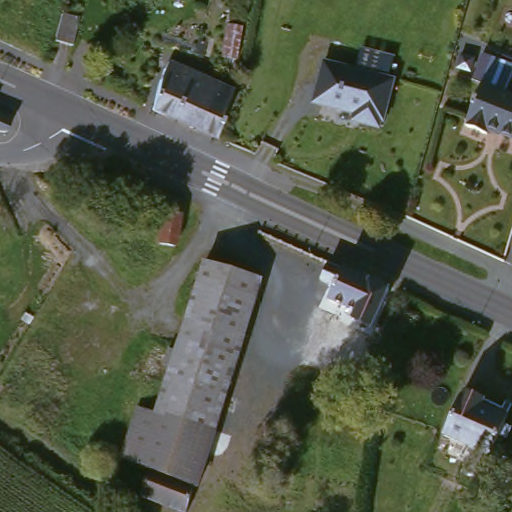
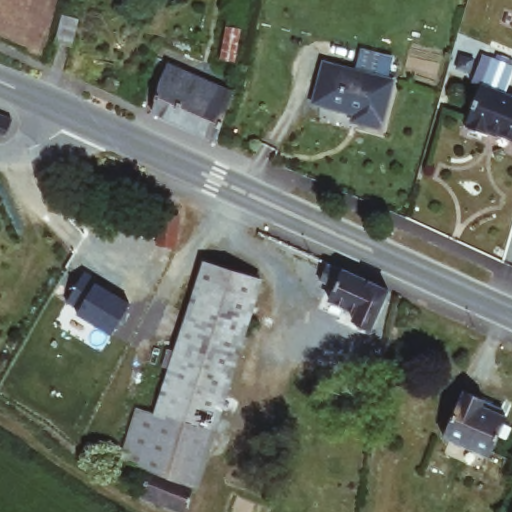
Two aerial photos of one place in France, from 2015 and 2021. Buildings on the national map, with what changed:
unchanged [(63,39),(70,12),(87,15),(79,41),(63,39)]
unchanged [(235,54),(243,22),(257,26),(254,37),(254,40),(250,57),(235,54)]
unchanged [(481,127),(480,132),(461,126),(474,87),(465,84),(473,61),(501,70),(493,94),(512,100),(512,133),(510,137),(481,127)]
unchanged [(387,85),(374,126),(372,125),(370,132),(351,127),(353,120),(313,107),(307,97),(317,65),(387,85)]
unchanged [(205,141),(150,116),(145,114),(165,67),(226,96),(205,141)]
unchanged [(5,117),(1,134),(0,133),(0,114),(5,117)]
unchanged [(157,236),(168,207),(185,212),(176,241),(157,236)]
unchanged [(266,273),(196,482),(178,476),(150,466),(117,455),(135,402),(153,411),(204,253),(266,273)]
unchanged [(363,331),(347,326),(348,322),(351,316),(324,304),(331,292),(318,286),(328,266),(341,272),(381,289),(363,331)]
new [(116,290),(112,293),(131,303),(111,335),(75,312),(77,308),(66,302),(83,270),(116,290)]
unchanged [(481,453),(436,433),(454,396),(498,413),(481,453)]
unchanged [(185,508),(140,493),(150,466),(178,476),(196,482),(185,508)]

